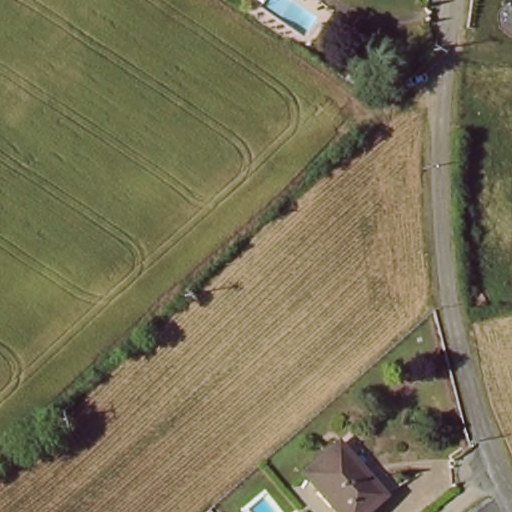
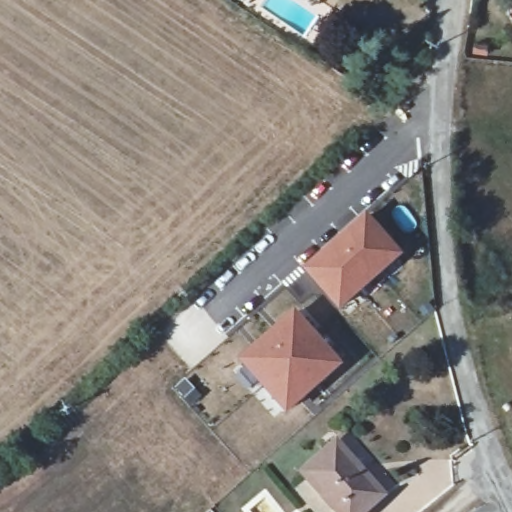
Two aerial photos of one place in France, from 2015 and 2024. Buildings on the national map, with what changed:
new [(363,211),(402,255),(338,311),(299,267),(363,211)]
new [(292,307),(342,364),(283,415),(233,359),(292,307)]
unchanged [(361,512),(338,512),(305,474),(340,444),(383,494),(361,512)]

